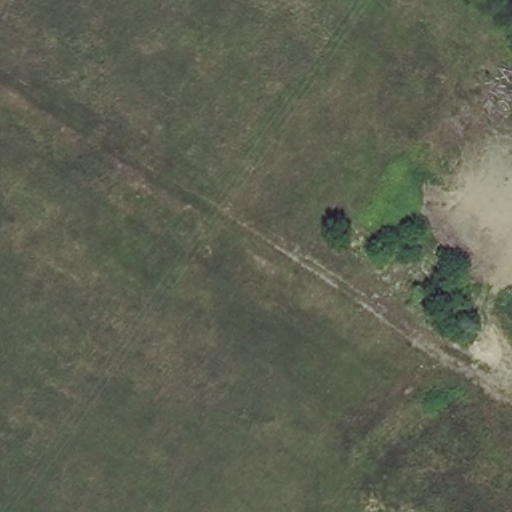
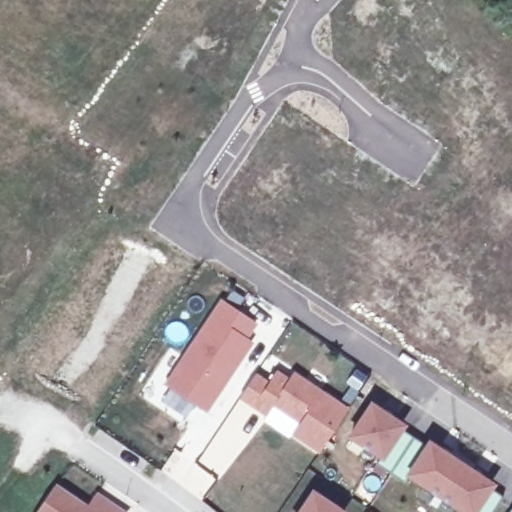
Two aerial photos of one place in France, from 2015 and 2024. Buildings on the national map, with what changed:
new [(220,297),(225,299),(233,287),(245,295),(235,306),(258,322),(248,338),(255,342),(207,415),(194,407),(187,417),(173,410),(177,405),(180,408),(185,402),(162,385),(220,297)]
new [(256,370),(268,378),(276,367),(290,376),(263,417),(237,399),(256,370)]
new [(293,370),(340,400),(349,386),(345,383),(357,367),(368,375),(348,407),(319,454),(262,420),(263,417),(290,376),(293,370)]
new [(352,436),(372,406),(403,426),(382,456),(352,436)]
new [(408,477),(403,482),(392,473),(414,440),(425,447),(428,441),(495,483),(491,490),(503,498),(493,512),(462,512),(408,477)]
new [(56,485),(88,506),(97,493),(123,512),(38,512),(56,485)]
new [(313,492),(342,512),(300,512),(313,492)]
new [(511,511),(512,511),(512,512),(510,512),(511,511)]

